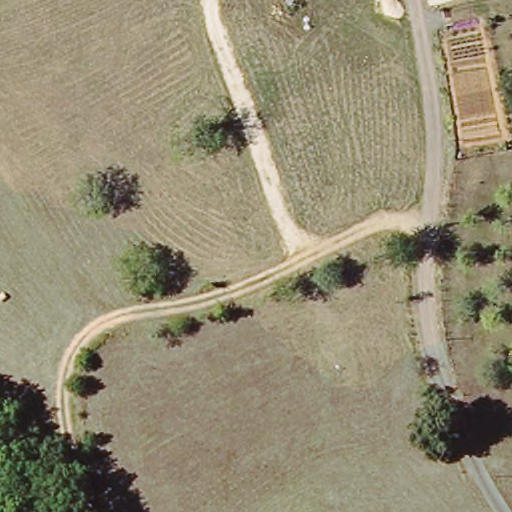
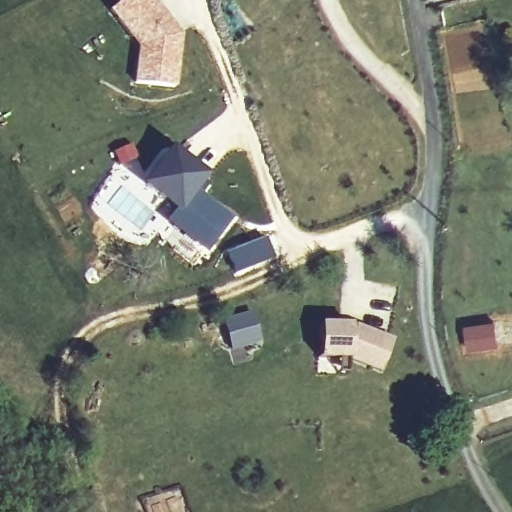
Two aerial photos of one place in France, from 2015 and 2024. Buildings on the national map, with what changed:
new [(181,33),(176,87),(134,81),(137,46),(108,10),(121,0),(155,0),(181,33)]
new [(166,144),(207,178),(199,188),(175,214),(173,212),(136,182),(166,144)]
new [(173,212),(175,214),(199,188),(233,217),(201,256),(163,225),(173,212)]
new [(262,237),(271,260),(231,276),(221,254),(262,237)]
new [(250,310),(258,344),(229,351),(221,318),(250,310)]
new [(349,324),(354,324),(394,339),(381,372),(349,360),(318,360),(318,323),(349,324)]

